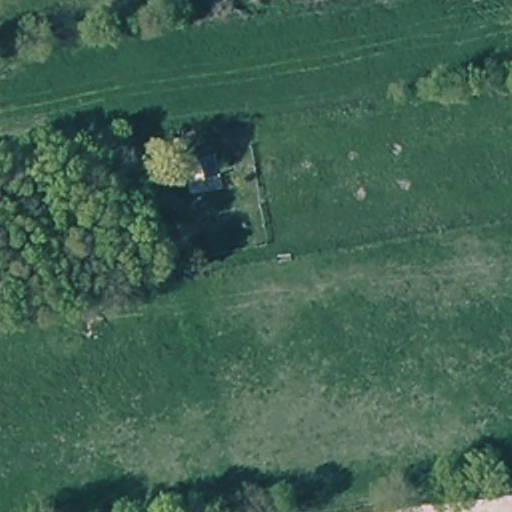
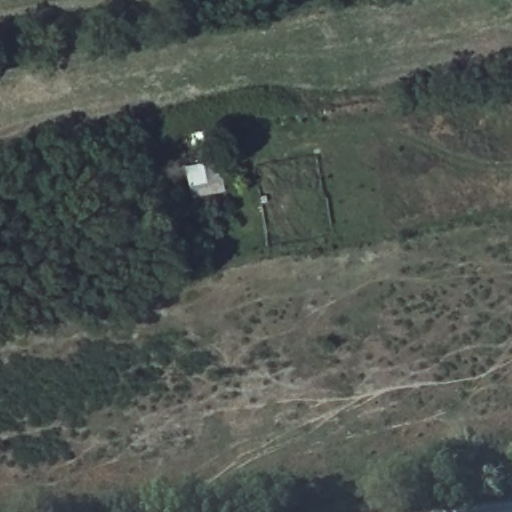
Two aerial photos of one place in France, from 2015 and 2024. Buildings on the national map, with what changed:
unchanged [(205,178),(191,180),(188,162),(201,160),(205,178)]

